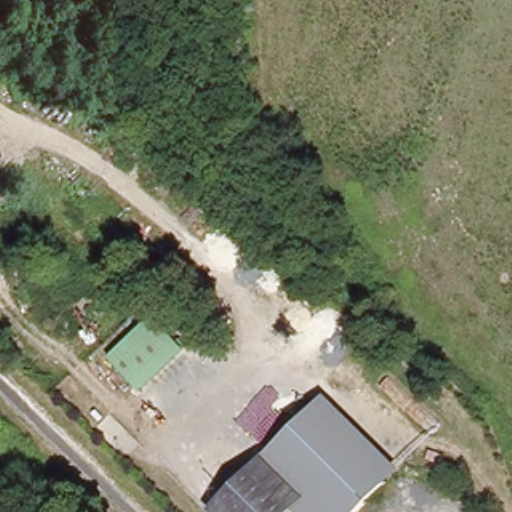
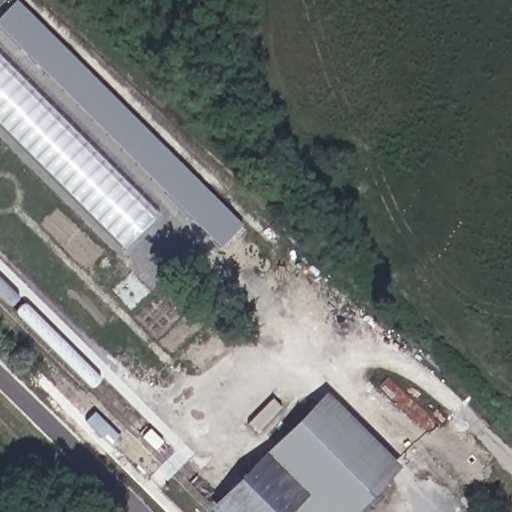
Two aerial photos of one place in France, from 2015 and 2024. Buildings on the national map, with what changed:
new [(17,0),(241,225),(217,247),(0,27),(0,16),(16,0),(17,0)]
new [(123,247),(0,126),(0,56),(157,214),(123,247)]
unchanged [(178,343),(138,385),(108,353),(150,311),(178,343)]
unchanged [(357,512),(324,512),(304,493),(265,455),(324,393),(395,465),(399,468),(357,512)]
unchanged [(304,493),(285,512),(263,512),(237,486),(265,455),(304,493)]
new [(237,486),(263,512),(215,512),(237,486)]

